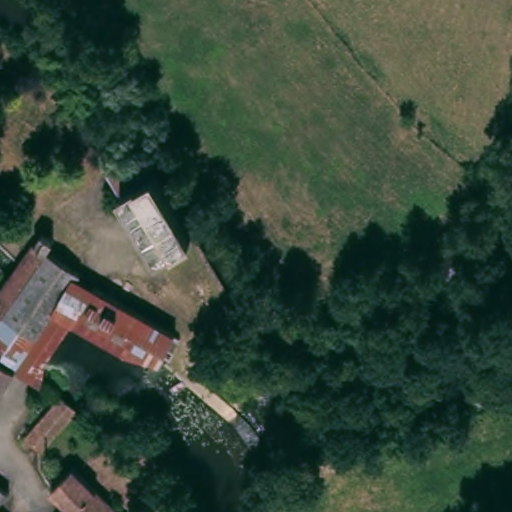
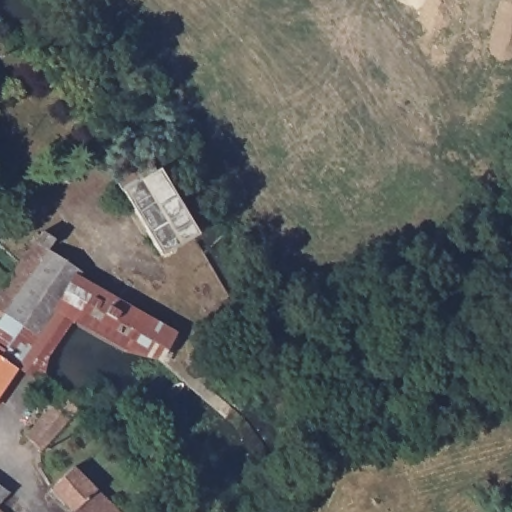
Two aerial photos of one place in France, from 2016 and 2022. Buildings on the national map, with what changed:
unchanged [(131,202),(116,178),(149,157),(165,181),(131,202)]
unchanged [(165,181),(204,242),(201,244),(170,261),(131,202),(165,181)]
unchanged [(22,261),(47,230),(59,240),(54,247),(86,273),(50,320),(47,316),(46,316),(32,297),(25,286),(15,274),(22,261)]
unchanged [(15,274),(25,286),(32,297),(46,316),(47,316),(44,321),(32,340),(0,389),(0,285),(12,270),(15,274)]
unchanged [(72,317),(62,335),(58,331),(50,320),(86,273),(102,286),(79,321),(72,317)]
unchanged [(80,416),(42,450),(28,434),(39,425),(66,401),(80,416)]
unchanged [(77,507),(53,488),(75,466),(133,512),(73,512),(77,507)]
unchanged [(0,507),(0,485),(10,493),(0,507)]
unchanged [(0,511),(1,512),(0,512),(0,511)]

